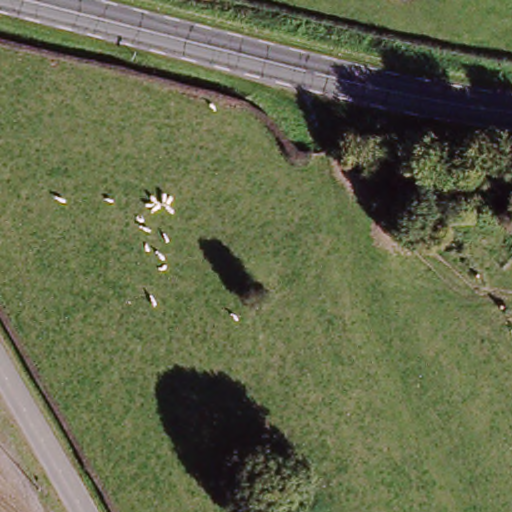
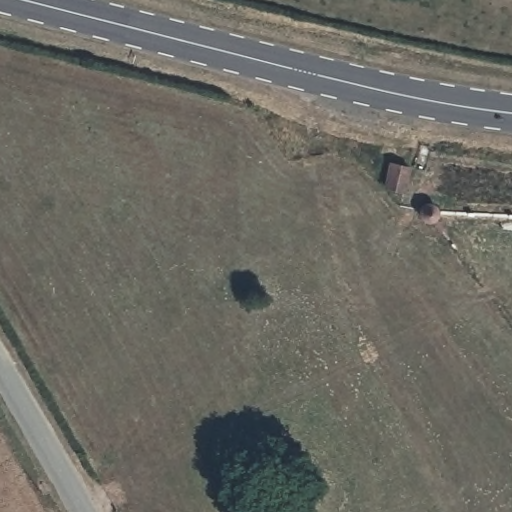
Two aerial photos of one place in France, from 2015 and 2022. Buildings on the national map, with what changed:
unchanged [(405,169),(402,190),(380,185),(384,164),(405,169)]

